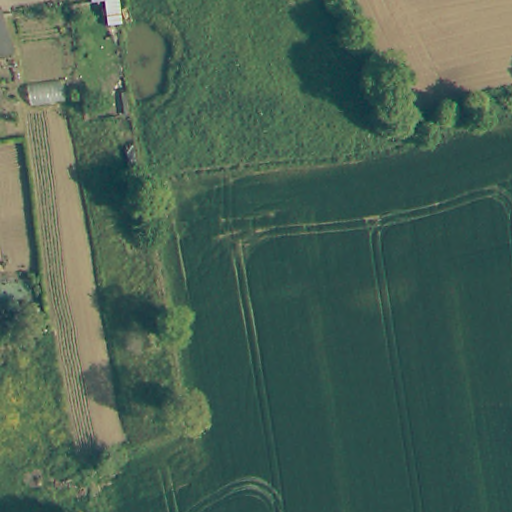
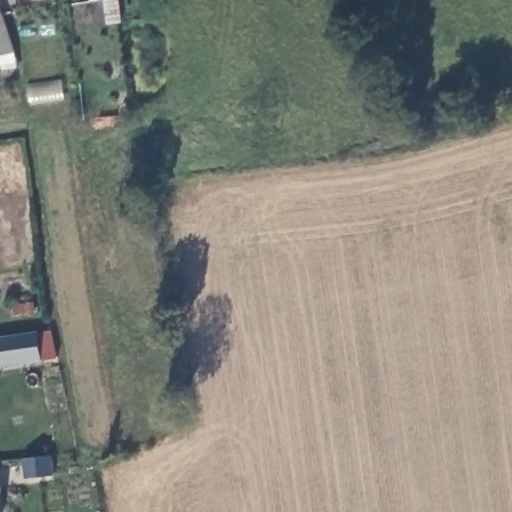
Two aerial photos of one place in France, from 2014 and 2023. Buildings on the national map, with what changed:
unchanged [(125,21),(107,23),(103,0),(121,0),(125,21)]
unchanged [(26,47),(0,55),(0,6),(16,2),(26,47)]
new [(0,367),(0,337),(37,331),(42,360),(0,367)]

